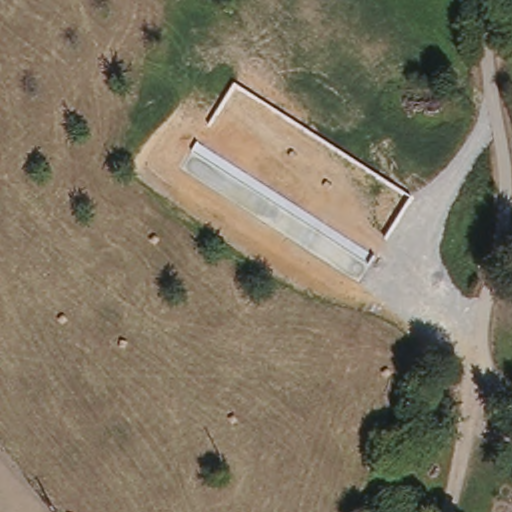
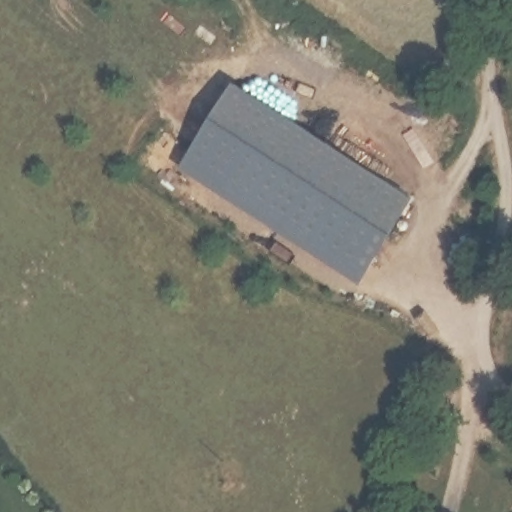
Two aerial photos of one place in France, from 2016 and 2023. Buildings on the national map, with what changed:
new [(232,91),(412,204),(358,283),(180,167),(232,91)]

